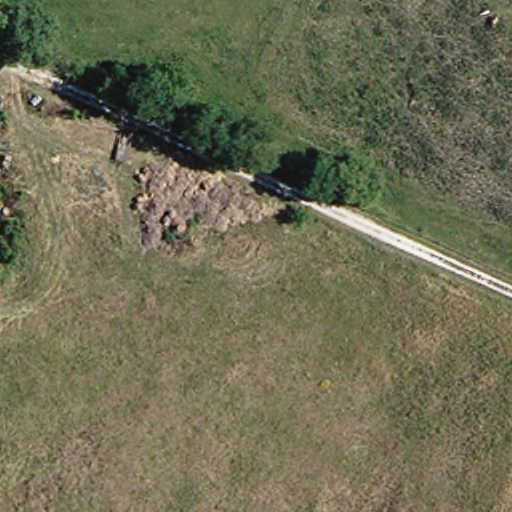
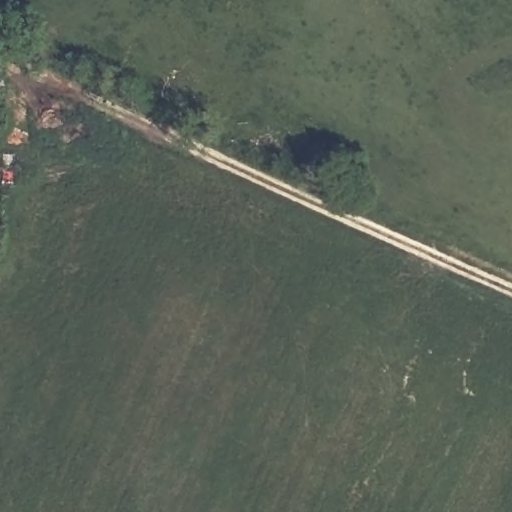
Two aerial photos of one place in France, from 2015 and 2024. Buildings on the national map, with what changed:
[]

